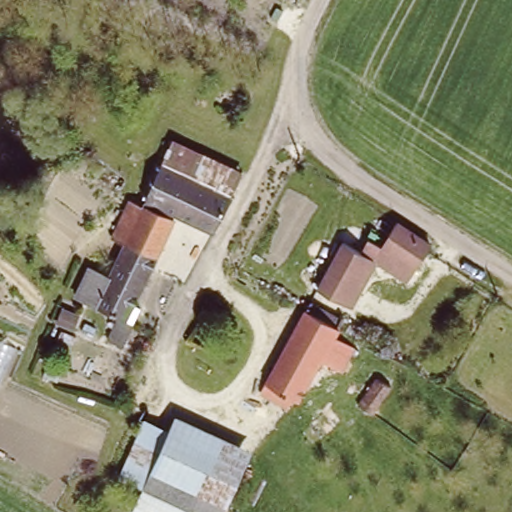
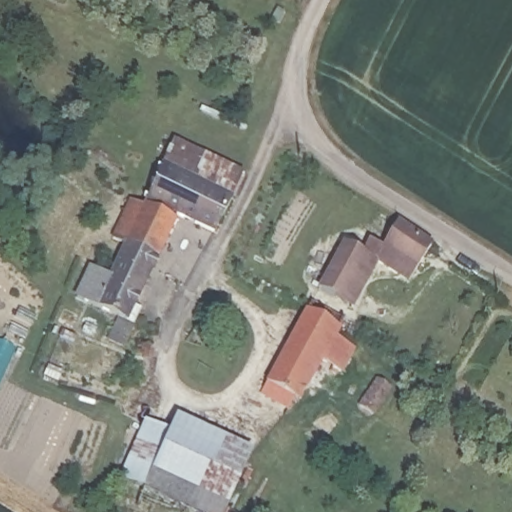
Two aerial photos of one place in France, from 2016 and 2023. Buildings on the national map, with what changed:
unchanged [(227,200),(167,170),(180,146),(237,175),(227,200)]
unchanged [(213,235),(151,205),(167,170),(227,200),(213,235)]
unchanged [(116,247),(132,209),(174,225),(156,266),(124,251),(116,247)]
unchanged [(319,291),(329,275),(347,246),(376,265),(395,235),(400,227),(401,225),(436,248),(430,257),(421,272),(410,288),(399,281),(382,270),(365,297),(355,313),(319,291)]
unchanged [(156,266),(129,328),(134,330),(124,351),(109,345),(119,323),(96,313),(124,251),(156,266)]
unchanged [(342,330),(337,338),(357,350),(345,373),(347,374),(335,395),(313,382),(304,398),(299,395),(292,406),(262,389),(307,310),(342,330)]
unchanged [(396,391),(377,418),(364,408),(384,382),(396,391)]
unchanged [(174,437),(182,422),(252,458),(245,471),(224,512),(185,512),(146,491),(174,437)]
unchanged [(146,491),(122,480),(150,425),(174,437),(146,491)]
unchanged [(185,512),(135,512),(146,491),(185,512)]

